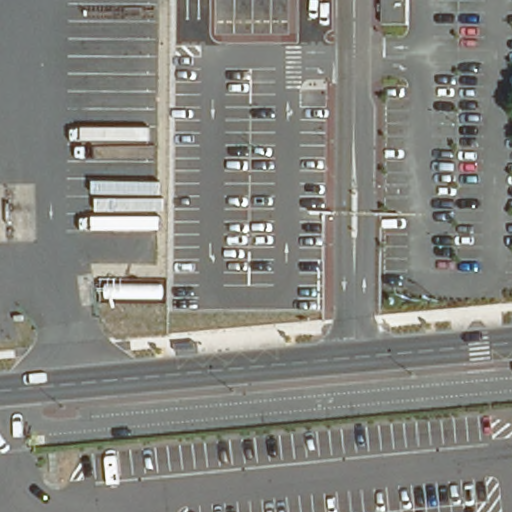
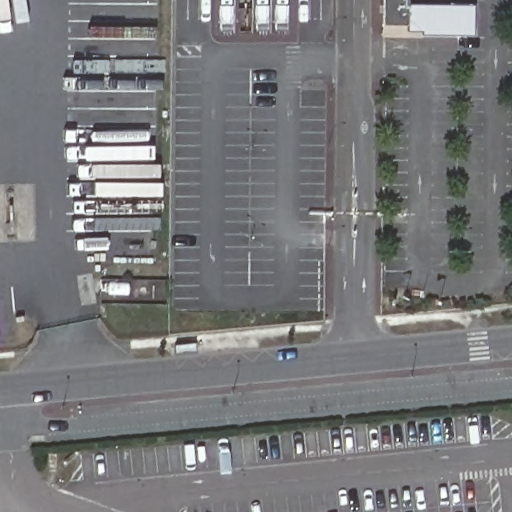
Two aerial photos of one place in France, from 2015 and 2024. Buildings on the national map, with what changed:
unchanged [(380,20),(380,0),(406,0),(405,20),(380,20)]
new [(474,4),(473,34),(421,34),(421,30),(407,29),(407,20),(405,20),(405,4),(474,4)]

